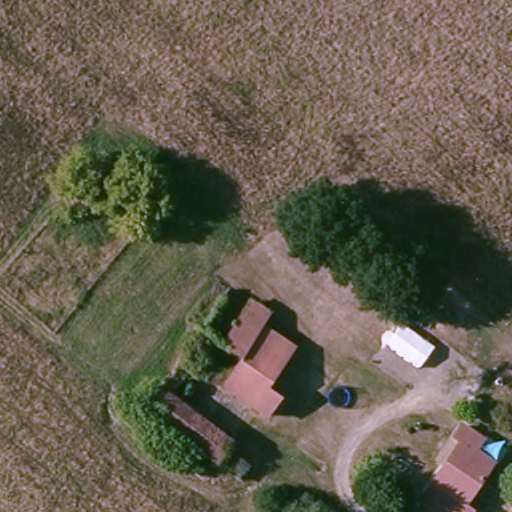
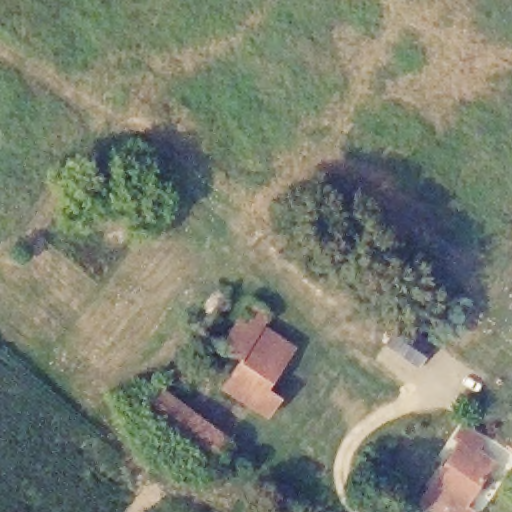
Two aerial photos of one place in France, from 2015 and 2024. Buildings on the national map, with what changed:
unchanged [(234,340),(245,316),(257,295),(276,306),(268,319),(302,338),(273,382),(288,391),(273,415),(224,384),(249,350),(234,340)]
unchanged [(142,403),(172,364),(195,378),(184,393),(255,454),(244,478),(142,403)]
unchanged [(483,436),(478,444),(493,455),(463,499),(432,477),(460,436),(454,432),(462,421),(483,436)]

